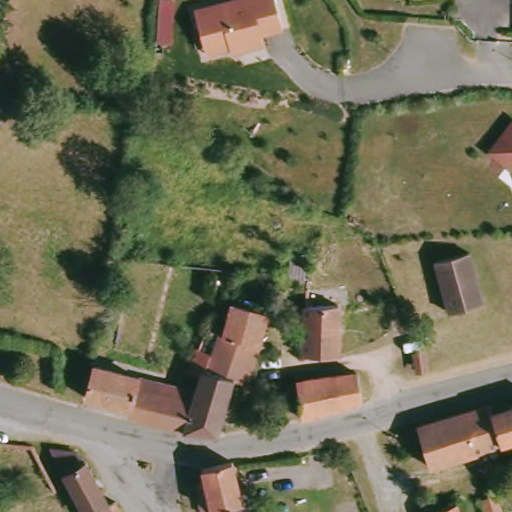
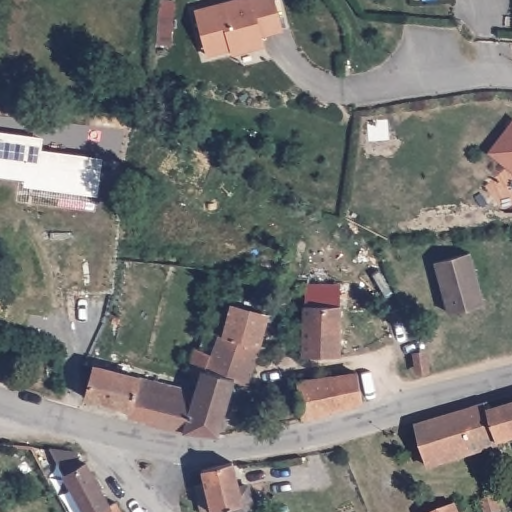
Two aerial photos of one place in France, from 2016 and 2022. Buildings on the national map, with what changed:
unchanged [(205,55),(193,11),(234,0),(273,0),(281,29),(260,35),(262,45),(241,51),(230,53),(228,48),(205,55)]
unchanged [(512,131),(512,163),(497,152),(512,131)]
new [(27,186),(27,180),(0,176),(0,136),(34,141),(42,142),(40,154),(102,162),(100,188),(98,195),(83,193),(27,186)]
unchanged [(485,303),(449,313),(434,262),(472,252),(485,303)]
unchanged [(333,341),(334,353),(297,351),(302,285),(302,283),(332,282),(332,287),(332,299),(333,341)]
unchanged [(267,314),(260,331),(257,340),(227,331),(218,328),(230,299),(267,314)]
unchanged [(232,372),(225,395),(193,385),(202,360),(215,363),(227,331),(257,340),(252,356),(245,376),(232,372)]
unchanged [(132,371),(130,380),(190,395),(182,424),(134,413),(135,410),(122,407),(122,404),(80,393),(87,361),(132,371)]
unchanged [(298,378),(318,375),(358,369),(365,399),(327,408),(302,413),(298,378)]
unchanged [(225,395),(213,428),(182,424),(190,395),(193,385),(225,395)]
unchanged [(419,426),(424,425),(493,407),(495,413),(512,408),(512,443),(432,467),(419,426)]
unchanged [(65,477),(53,454),(76,455),(83,470),(88,468),(108,509),(118,505),(122,512),(85,512),(67,476),(65,477)]
unchanged [(247,512),(244,512),(213,512),(212,511),(207,512),(205,506),(200,483),(207,482),(205,467),(233,464),(237,491),(246,490),(248,504),(247,512)]
unchanged [(488,512),(485,504),(497,500),(502,512),(488,512)]
unchanged [(461,512),(427,512),(457,502),(461,512)]

